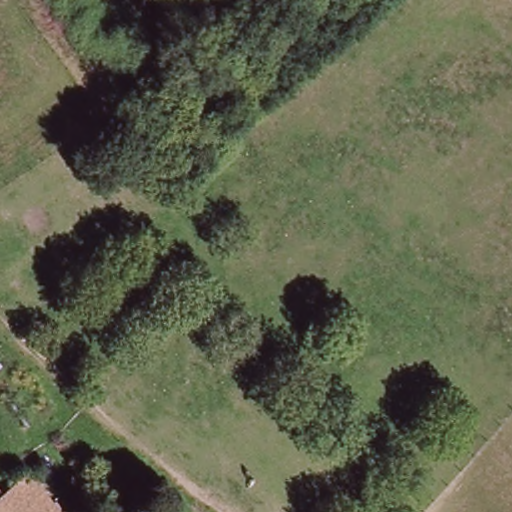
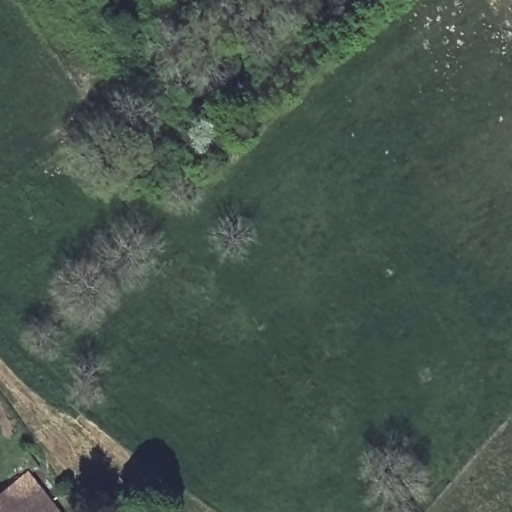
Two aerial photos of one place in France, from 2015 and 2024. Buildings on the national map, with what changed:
unchanged [(0,510),(40,482),(62,512),(0,512),(0,510)]

